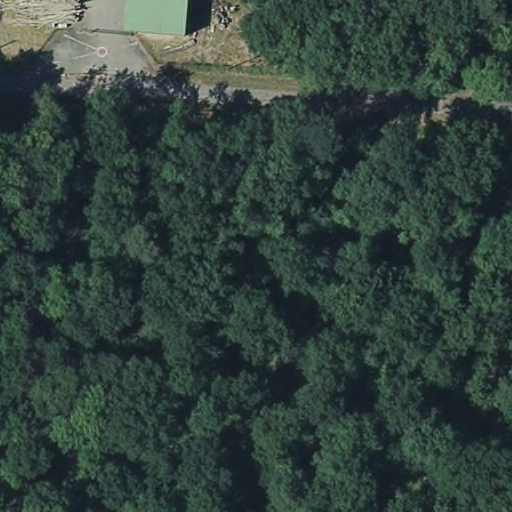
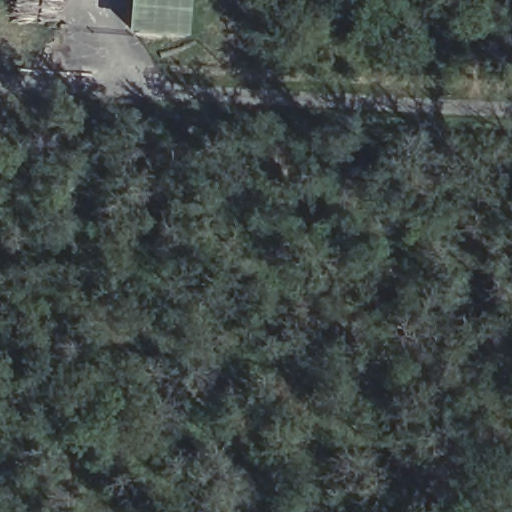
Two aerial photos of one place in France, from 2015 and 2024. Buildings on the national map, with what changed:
unchanged [(132,30),(133,0),(184,0),(183,33),(132,30)]

